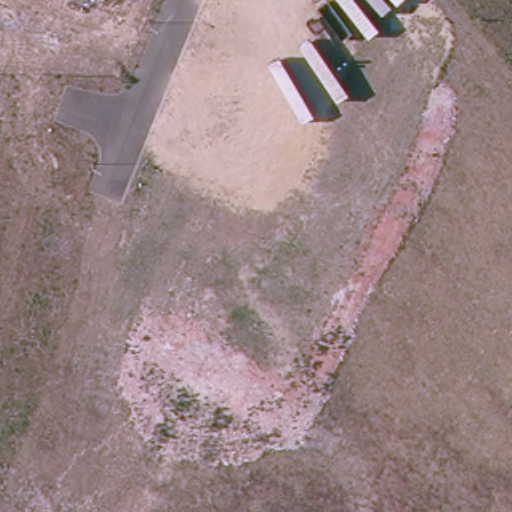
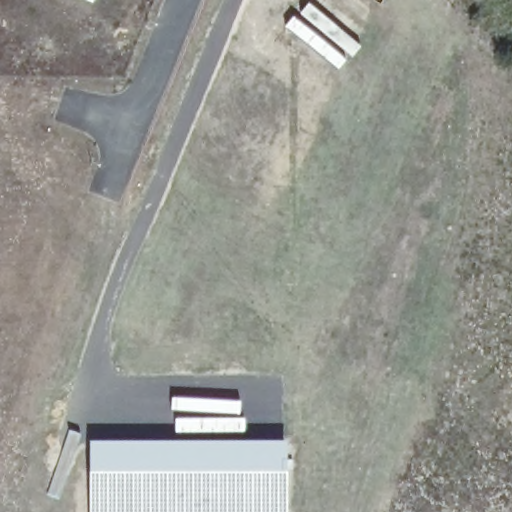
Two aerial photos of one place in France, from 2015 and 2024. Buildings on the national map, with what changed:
new [(288,443),(287,512),(89,512),(89,441),(288,443)]

